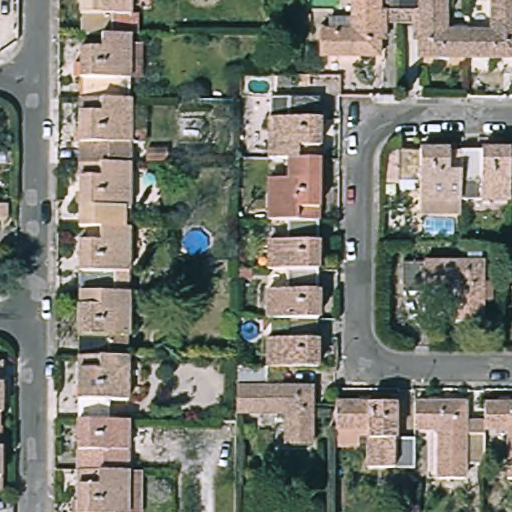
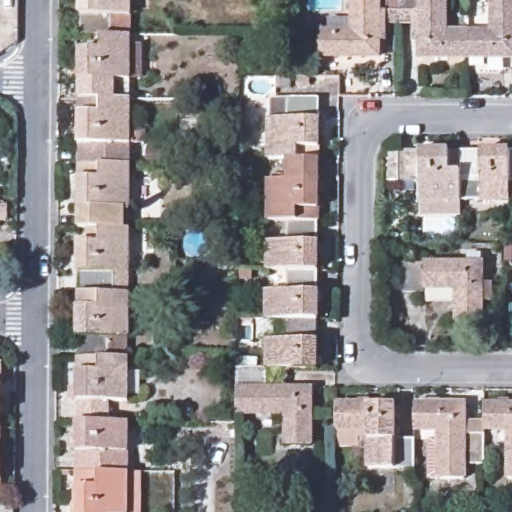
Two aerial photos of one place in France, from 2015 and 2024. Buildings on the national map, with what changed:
unchanged [(91,35),(72,35),(72,0),(122,0),(122,35),(91,35)]
unchanged [(371,56),(327,56),(327,28),(350,28),(350,0),(395,0),(395,18),(371,17),(371,56)]
unchanged [(440,0),(440,29),(463,29),(463,57),(418,56),(419,18),(395,18),(395,0),(440,0)]
unchanged [(490,0),(511,0),(511,2),(512,2),(512,30),(511,29),(511,57),(463,57),(463,29),(490,29),(490,0)]
unchanged [(72,54),(91,54),(91,35),(122,35),(123,102),(73,102),(72,54)]
unchanged [(275,157),(275,113),(294,113),(294,92),(324,92),(324,140),(303,140),(303,157),(294,157),(275,157)]
unchanged [(73,102),(123,102),(123,145),(103,146),(103,166),(73,166),(73,102)]
unchanged [(2,120),(1,168),(0,168),(0,120),(2,120)]
unchanged [(429,211),(429,196),(429,174),(407,174),(408,145),(457,146),(456,160),(467,160),(467,177),(467,196),(467,211),(429,211)]
unchanged [(486,177),(467,177),(467,160),(468,146),(512,146),(512,196),(486,196),(486,177)]
unchanged [(275,220),(275,175),(294,175),(294,157),(303,157),(324,157),(324,206),(303,206),(303,220),(291,220),(275,220)]
unchanged [(103,166),(123,166),(124,231),(93,231),(74,231),(73,166),(103,166)]
unchanged [(303,220),(324,220),(324,270),(291,270),(275,270),(275,240),(291,240),(291,220),(303,220)]
unchanged [(124,293),(93,294),(74,294),(74,247),(93,247),(93,231),(124,231),(124,293)]
unchanged [(403,258),(482,259),(482,318),(455,318),(455,284),(424,283),(424,289),(403,289),(403,258)]
unchanged [(324,321),(291,321),(275,321),(275,291),(291,291),(291,270),(324,270),(324,321)]
unchanged [(124,293),(124,342),(104,342),(104,358),(93,358),(75,358),(74,310),(93,310),(93,294),(124,293)]
unchanged [(275,342),(291,342),(291,321),(324,321),(324,369),(275,369),(275,342)]
unchanged [(125,358),(125,404),(105,404),(105,422),(75,422),(75,374),(94,374),(93,358),(104,358),(125,358)]
unchanged [(3,359),(3,407),(0,408),(0,359),(3,359)]
unchanged [(243,369),(275,369),(275,391),(317,391),(317,449),(285,449),(285,419),(243,419),(243,369)]
unchanged [(393,398),(394,431),(415,431),(415,461),(366,463),(365,427),(331,425),(331,398),(393,398)]
unchanged [(485,432),(485,461),(462,460),(462,476),(436,476),(437,427),(415,427),(416,398),(463,399),(463,432),(485,432)]
unchanged [(506,450),(506,425),(486,424),(486,399),(512,399),(512,473),(507,473),(506,450)]
unchanged [(3,422),(3,488),(0,488),(0,422),(3,422)]
unchanged [(75,422),(105,422),(125,422),(125,452),(119,452),(119,472),(75,472),(75,422)]
unchanged [(75,472),(119,472),(125,472),(125,512),(75,512),(75,472)]

